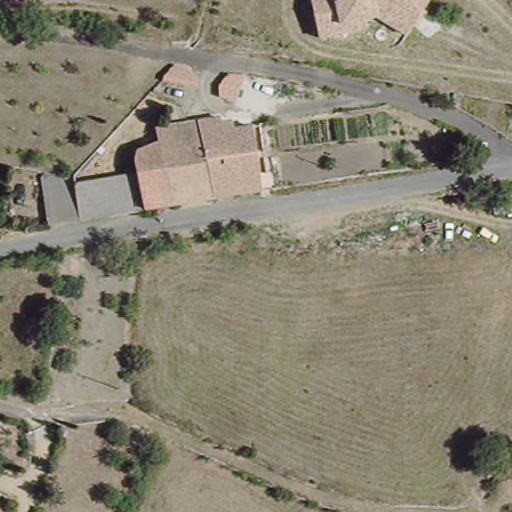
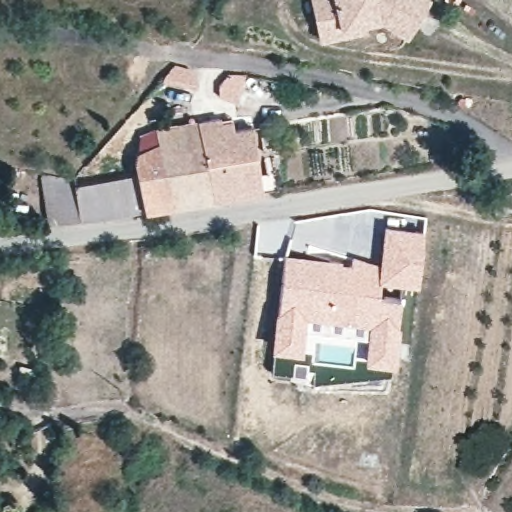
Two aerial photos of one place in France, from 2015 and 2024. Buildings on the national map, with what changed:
unchanged [(381,16),(368,19),(372,31),(323,41),(313,0),(437,0),(412,38),(381,16)]
unchanged [(199,115),(230,111),(235,126),(259,121),(269,187),(217,195),(199,115)]
unchanged [(135,155),(141,142),(162,140),(159,122),(199,115),(217,195),(85,219),(77,181),(140,170),(135,155)]
unchanged [(48,186),(77,181),(85,219),(54,225),(48,186)]
new [(383,224),(424,229),(417,285),(380,282),(378,260),(383,224)]
new [(273,315),(284,252),(348,260),(350,255),(378,260),(380,282),(380,292),(401,295),(395,365),(363,360),(366,325),(307,318),(302,352),(270,349),(273,315)]
unchanged [(2,512),(0,512),(0,511),(2,511),(2,512)]

